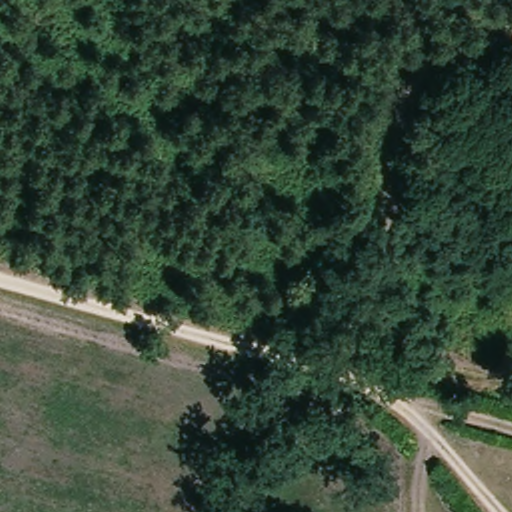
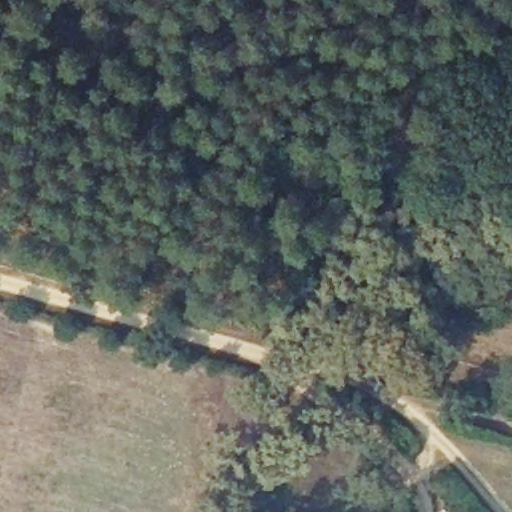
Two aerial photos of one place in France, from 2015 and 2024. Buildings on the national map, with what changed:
[]

